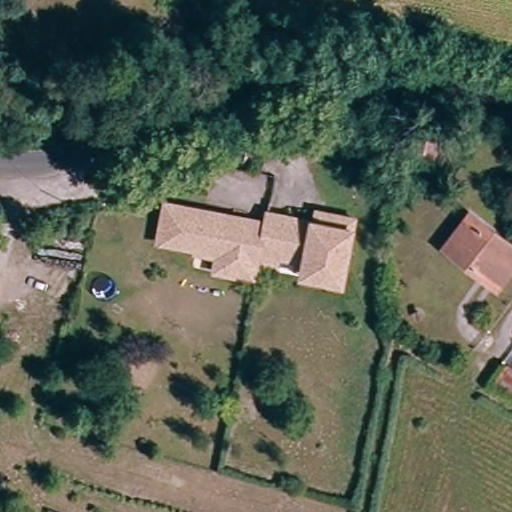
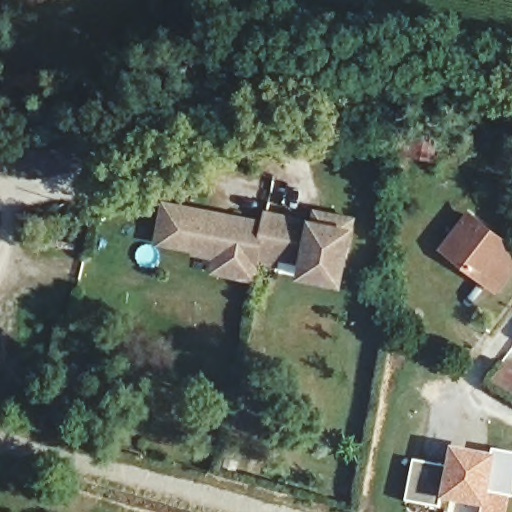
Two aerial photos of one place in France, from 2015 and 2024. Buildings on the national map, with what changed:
unchanged [(215,271),(217,257),(195,254),(196,250),(177,247),(157,245),(162,206),(179,208),(263,219),(264,209),(311,215),(313,204),(323,206),(351,209),(346,247),(344,262),(303,256),(305,242),(280,238),(279,245),(260,242),(258,255),(257,262),(256,276),(215,271)]
unchanged [(485,280),(463,264),(444,248),(458,233),(475,215),(512,245),(512,275),(498,290),(485,280)]
unchanged [(508,349),(512,351),(512,378),(497,370),(508,349)]
new [(453,449),(492,457),(494,450),(512,454),(512,500),(491,496),(488,509),(443,501),(441,509),(405,502),(414,462),(450,470),(453,449)]

